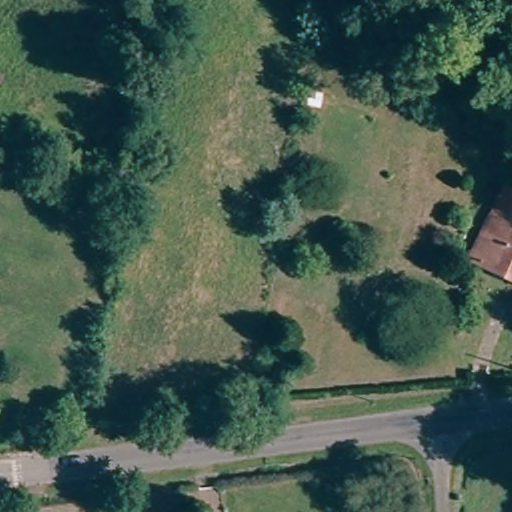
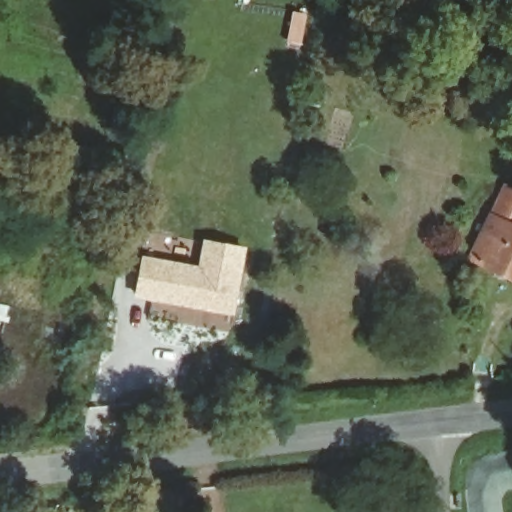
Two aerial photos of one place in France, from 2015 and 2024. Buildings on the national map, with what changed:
unchanged [(465,259),(504,182),(512,186),(512,280),(465,259)]
new [(201,268),(206,241),(245,249),(232,312),(137,295),(145,257),(201,268)]

